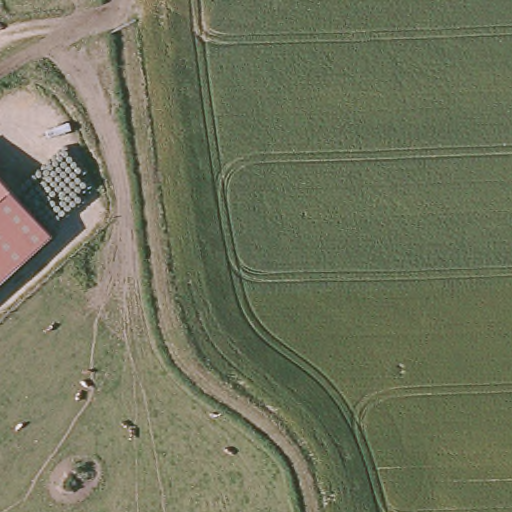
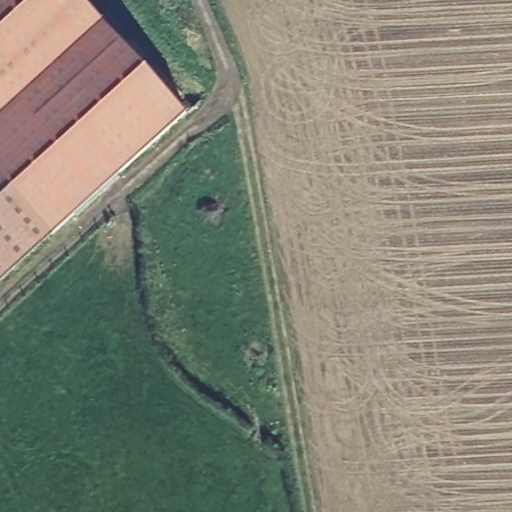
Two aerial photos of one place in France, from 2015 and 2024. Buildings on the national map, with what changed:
new [(0,177),(0,0),(83,0),(185,111),(52,234),(0,177)]
new [(52,234),(0,281),(0,177),(52,234)]

